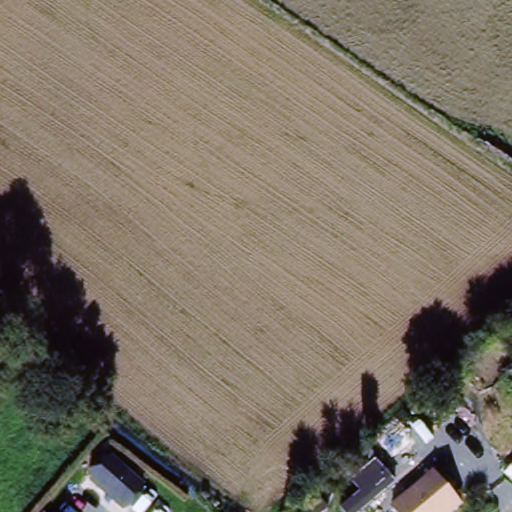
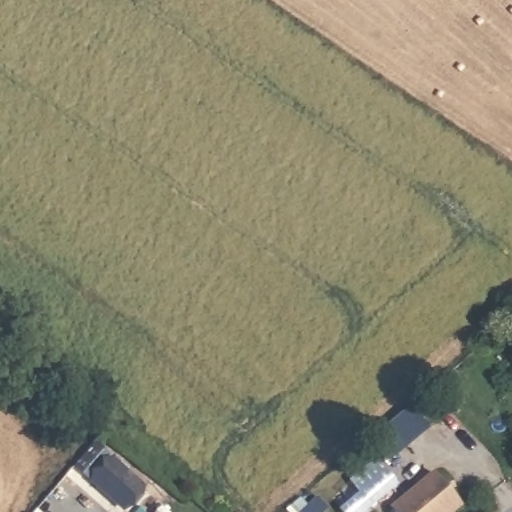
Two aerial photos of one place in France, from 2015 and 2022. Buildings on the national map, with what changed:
unchanged [(115,457),(147,486),(127,507),(95,477),(115,457)]
unchanged [(465,504),(455,512),(393,512),(390,510),(438,473),(465,504)]
unchanged [(392,492),(368,512),(341,512),(340,511),(382,476),(392,492)]

